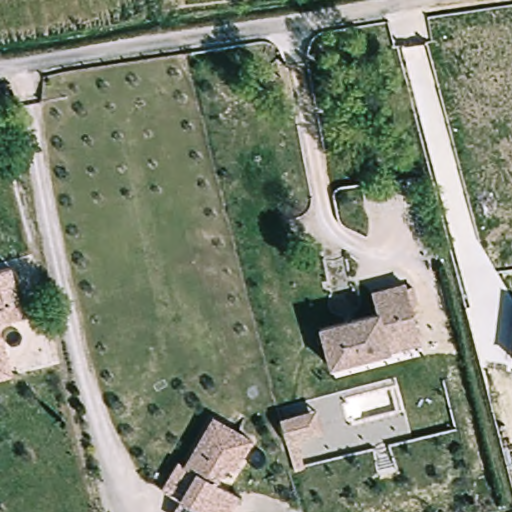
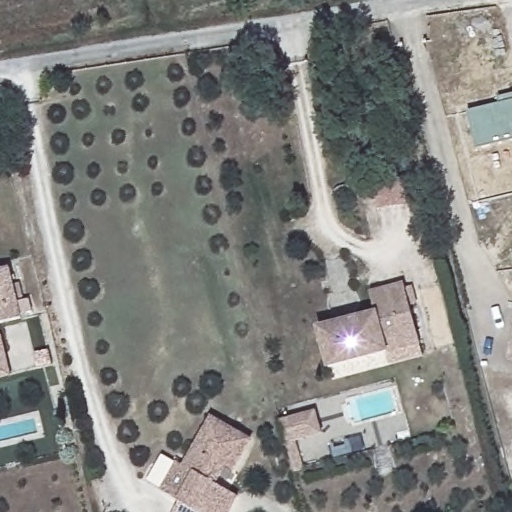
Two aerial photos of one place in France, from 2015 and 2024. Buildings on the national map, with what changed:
new [(477,148),(470,112),(499,104),(498,98),(512,95),(512,140),(477,148)]
new [(411,193),(413,209),(380,213),(378,196),(411,193)]
unchanged [(22,324),(0,329),(0,274),(10,272),(22,324)]
unchanged [(388,354),(328,369),(318,328),(376,314),(371,294),(404,286),(405,291),(412,289),(417,306),(410,307),(417,336),(420,346),(388,354)]
unchanged [(0,338),(6,364),(10,381),(0,383),(0,338)]
unchanged [(301,465),(292,468),(284,441),(283,439),(279,421),(278,418),(298,412),(312,408),(318,429),(304,433),(293,436),(301,465)]
unchanged [(232,512),(177,512),(199,475),(187,468),(216,417),(255,440),(237,471),(229,466),(218,483),(234,492),(241,497),(236,507),(232,512)]

